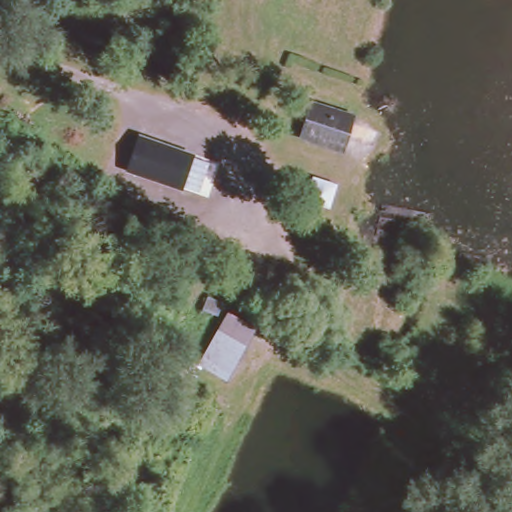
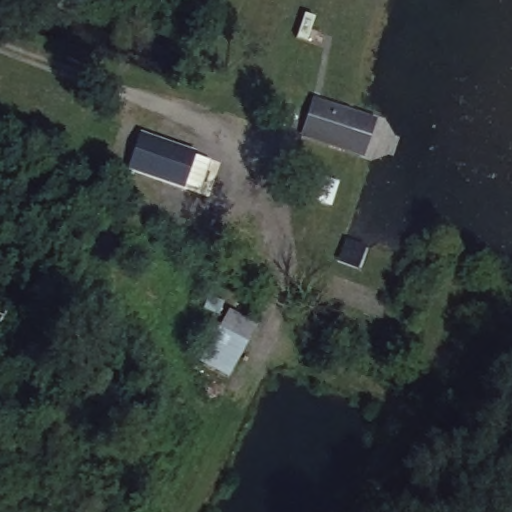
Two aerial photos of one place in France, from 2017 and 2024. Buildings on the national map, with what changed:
unchanged [(296,142),(306,103),(352,116),(351,125),(363,131),(361,146),(346,144),(341,159),(296,142)]
unchanged [(195,154),(183,190),(125,171),(138,134),(195,154)]
unchanged [(334,209),(306,199),(316,172),(343,182),(334,209)]
unchanged [(198,364),(228,310),(258,326),(227,380),(198,364)]

